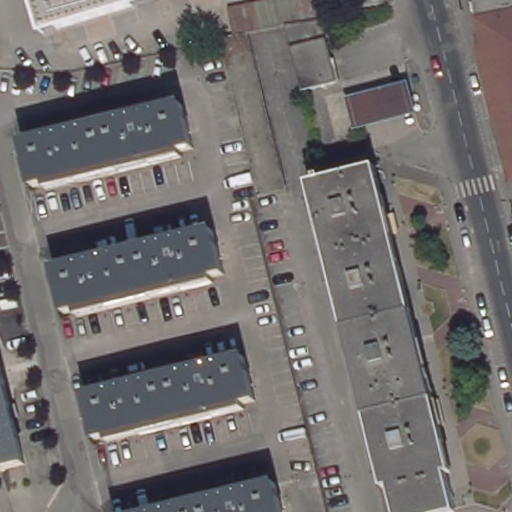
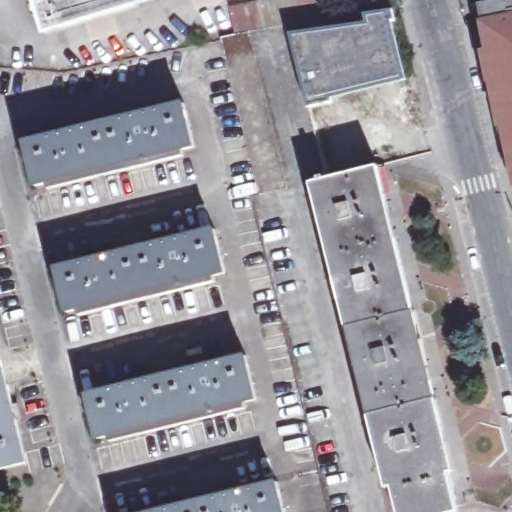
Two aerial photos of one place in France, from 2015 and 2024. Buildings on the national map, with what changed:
unchanged [(39,0),(149,0),(49,30),(39,0)]
unchanged [(244,36),(238,10),(277,0),(334,0),(337,14),(295,24),(257,33),(244,36)]
unchanged [(479,9),(512,3),(512,167),(479,9)]
new [(365,21),(364,11),(392,7),(407,79),(307,106),(289,34),(365,21)]
demolished [(332,19),(348,83),(311,91),(295,24),(332,19)]
unchanged [(257,33),(295,191),(266,199),(229,40),(244,36),(257,33)]
unchanged [(37,186),(27,141),(187,103),(197,148),(37,186)]
unchanged [(448,512),(399,512),(386,464),(381,465),(376,447),(382,445),(363,374),(358,376),(355,359),(360,358),(345,303),(340,304),(336,287),(341,286),(328,231),(322,232),(317,213),(322,212),(317,184),(327,181),(374,169),(460,509),(448,512)]
unchanged [(229,273),(67,311),(57,269),(219,231),(229,273)]
unchanged [(0,324),(30,448),(0,456),(0,324)]
unchanged [(259,400),(99,438),(89,395),(249,357),(259,400)]
unchanged [(286,512),(154,512),(279,482),(286,512)]

